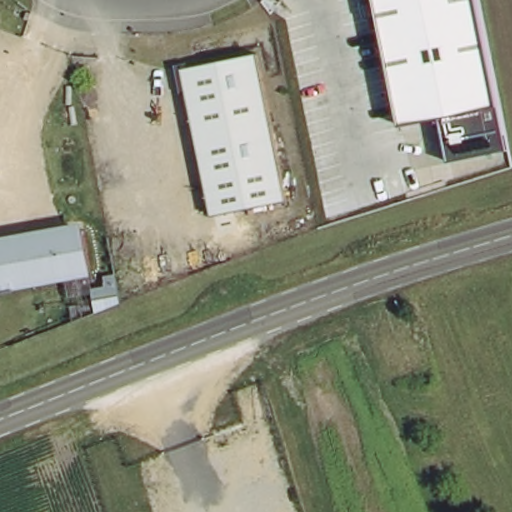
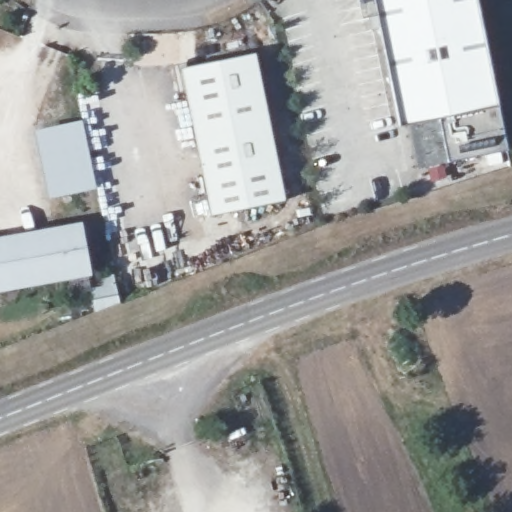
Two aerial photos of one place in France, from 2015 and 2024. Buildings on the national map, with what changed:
unchanged [(374,0),(477,0),(507,153),(447,164),(439,121),(399,128),(374,0)]
unchanged [(181,69),(256,55),(284,202),(210,216),(181,69)]
new [(82,119),(97,190),(47,199),(32,129),(82,119)]
unchanged [(0,292),(0,237),(83,222),(92,277),(0,292)]

